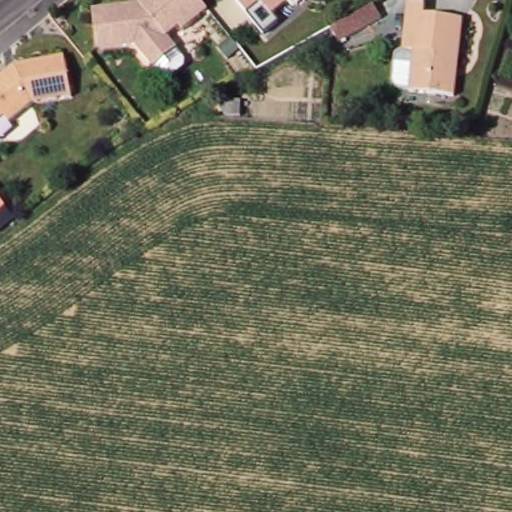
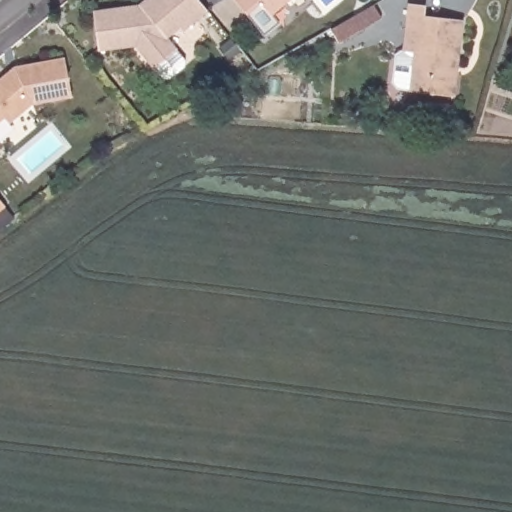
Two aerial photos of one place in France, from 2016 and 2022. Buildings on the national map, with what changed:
unchanged [(194,0),(203,11),(179,31),(175,28),(163,38),(172,50),(150,69),(131,46),(125,47),(94,51),(89,11),(135,5),(141,0),(194,0)]
unchanged [(235,0),(292,0),(272,16),(271,15),(250,13),(247,15),(235,0)]
unchanged [(409,4),(425,5),(424,16),(464,21),(455,97),(410,92),(415,53),(404,52),(409,4)]
unchanged [(375,5),(382,18),(339,44),(331,30),(375,5)]
unchanged [(65,57),(72,97),(32,105),(10,124),(5,118),(0,122),(0,80),(15,67),(65,57)]

